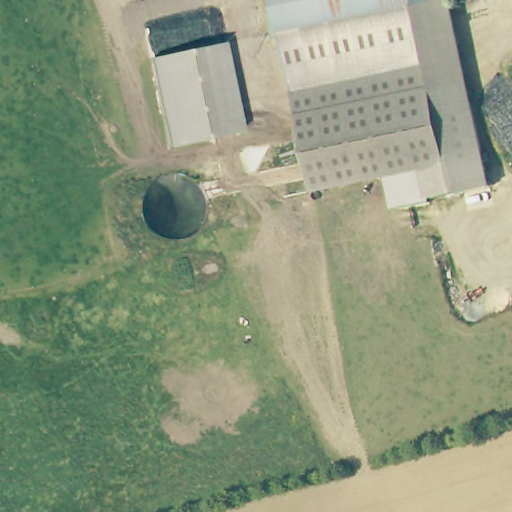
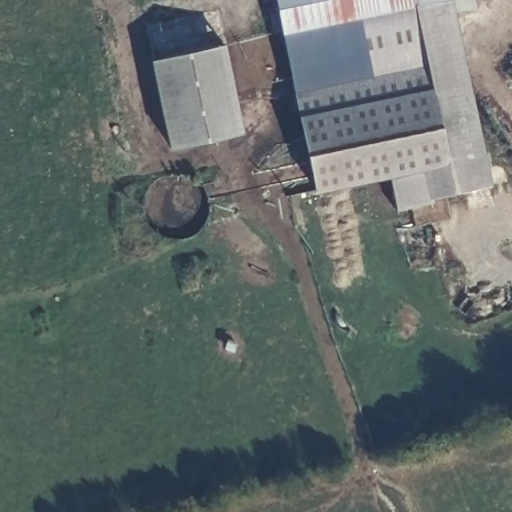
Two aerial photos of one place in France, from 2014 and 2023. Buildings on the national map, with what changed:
unchanged [(277,0),(451,0),(488,171),(491,182),(430,195),(428,185),(424,165),(318,188),(277,0)]
unchanged [(167,149),(147,60),(223,44),(241,134),(167,149)]

